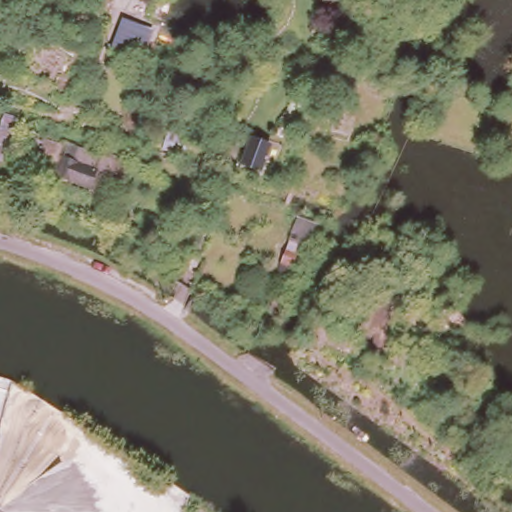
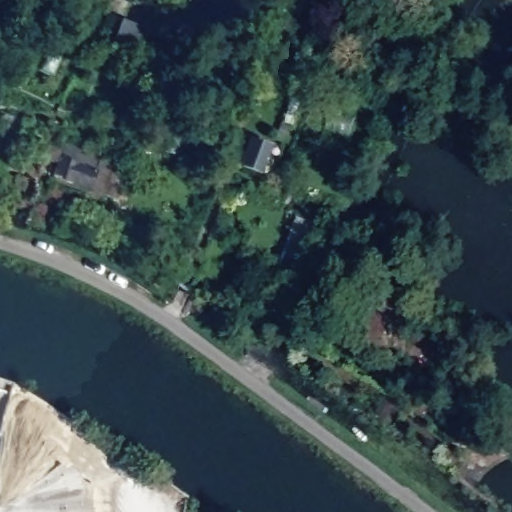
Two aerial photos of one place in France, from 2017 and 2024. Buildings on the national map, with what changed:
unchanged [(122,20),(155,30),(141,60),(110,49),(122,20)]
unchanged [(47,124),(44,137),(126,164),(115,196),(34,171),(22,210),(0,203),(0,128),(5,115),(47,124)]
unchanged [(267,149),(263,162),(240,154),(245,140),(267,149)]
unchanged [(300,245),(287,284),(275,280),(287,242),(300,245)]

